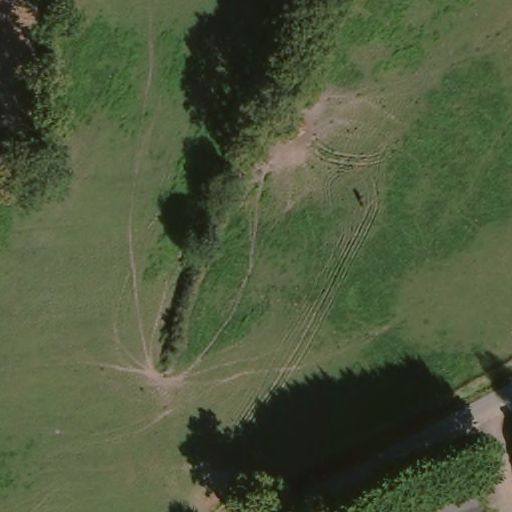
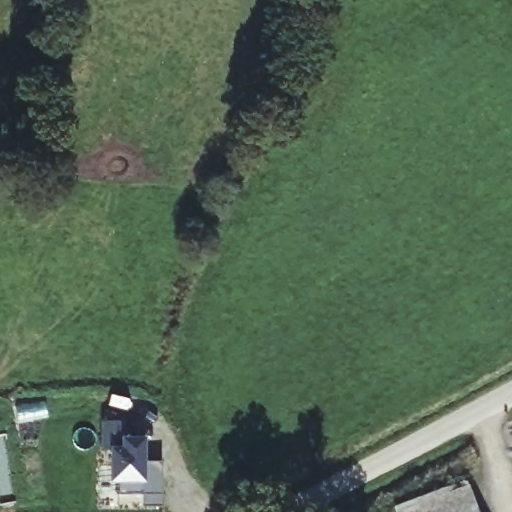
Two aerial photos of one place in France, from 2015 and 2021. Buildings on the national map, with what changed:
new [(124,421),(125,437),(146,437),(146,458),(161,462),(162,507),(144,507),(144,494),(121,494),(121,483),(110,482),(109,448),(102,451),(102,421),(124,421)]
unchanged [(478,512),(400,512),(468,485),(478,512)]

